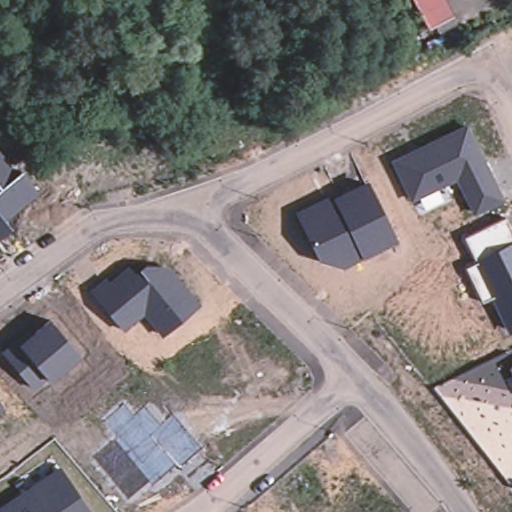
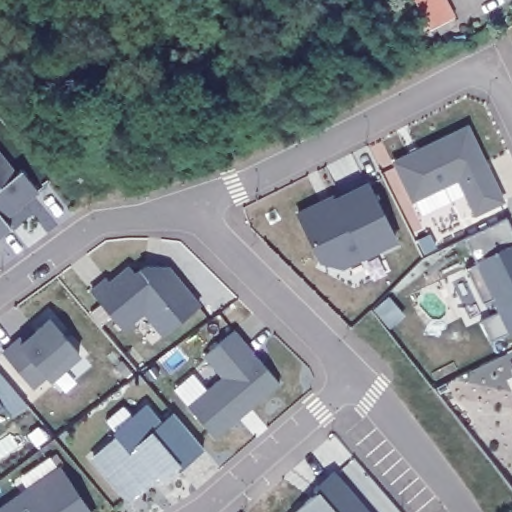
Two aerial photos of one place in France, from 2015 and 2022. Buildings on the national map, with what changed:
unchanged [(452,18),(428,31),(412,0),(443,0),(452,18)]
unchanged [(392,160),(467,126),(505,202),(473,215),(455,182),(412,202),(392,160)]
unchanged [(17,173),(23,170),(38,194),(3,219),(11,230),(0,238),(0,151),(17,173)]
unchanged [(362,258),(344,269),(317,258),(296,212),(332,196),(335,199),(368,181),(399,243),(362,258)]
unchanged [(482,303),(467,268),(476,263),(465,239),(505,220),(512,232),(512,333),(510,335),(492,298),(482,303)]
unchanged [(90,290),(104,277),(106,277),(110,282),(128,266),(139,270),(147,263),(168,267),(200,303),(201,305),(161,337),(143,316),(123,331),(90,290)]
unchanged [(0,352),(15,340),(20,343),(49,319),(80,357),(50,382),(46,377),(33,388),(0,352)]
new [(280,383),(216,437),(187,407),(221,377),(202,357),(235,329),(280,383)]
unchanged [(512,368),(512,374),(510,369),(512,368)]
unchanged [(4,410),(0,413),(0,404),(4,410)]
unchanged [(95,456),(118,435),(106,420),(123,404),(134,416),(145,406),(161,425),(175,414),(203,449),(178,470),(175,465),(152,486),(148,481),(128,497),(95,456)]
unchanged [(91,512),(0,512),(0,505),(59,464),(91,512)]
new [(293,512),(317,492),(312,489),(333,471),(370,512),(293,512)]

